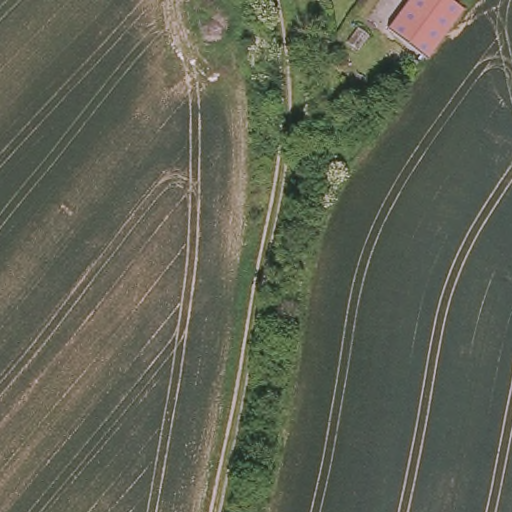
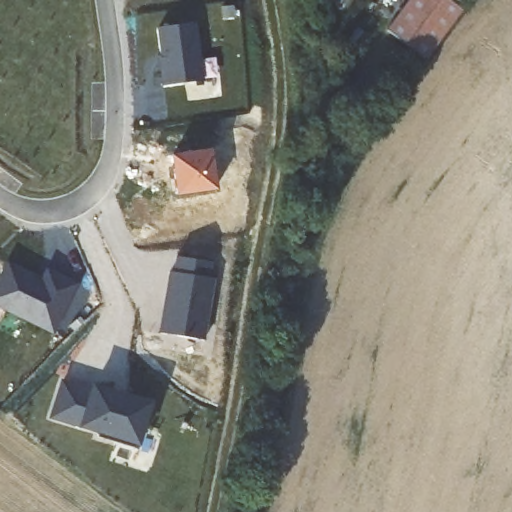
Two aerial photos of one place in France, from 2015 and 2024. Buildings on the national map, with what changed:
unchanged [(380,24),(401,0),(458,0),(463,5),(420,58),(380,24)]
new [(157,27),(195,22),(204,81),(162,86),(157,27)]
new [(170,153),(211,148),(216,190),(176,195),(170,153)]
new [(168,271),(172,271),(175,255),(214,262),(212,277),(216,277),(205,340),(158,333),(168,271)]
new [(41,277),(45,267),(78,284),(54,335),(0,307),(0,273),(6,261),(41,277)]
new [(49,418),(61,378),(90,387),(91,382),(153,401),(140,446),(49,418)]

